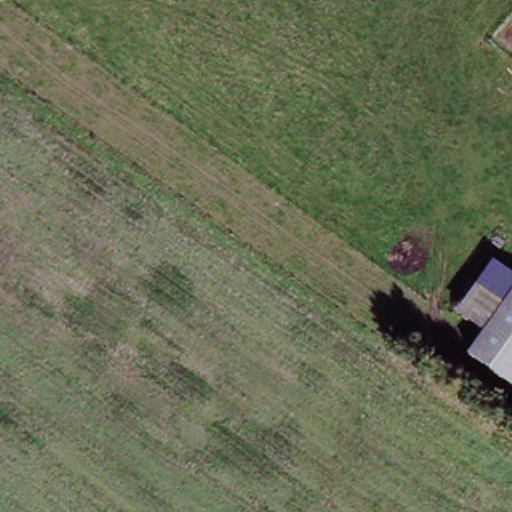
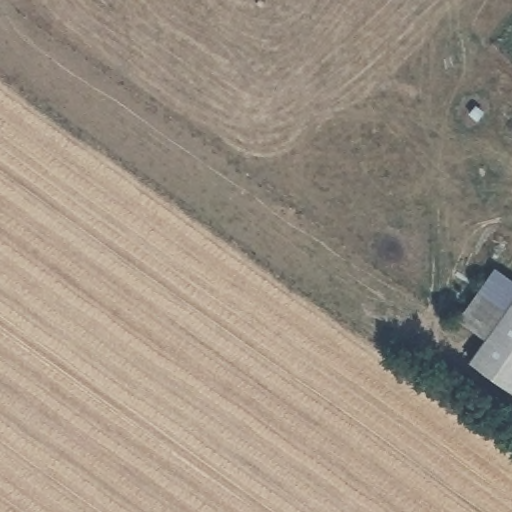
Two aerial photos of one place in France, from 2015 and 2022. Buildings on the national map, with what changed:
unchanged [(469,354),(489,327),(459,307),(494,260),(512,272),(512,386),(469,354)]

